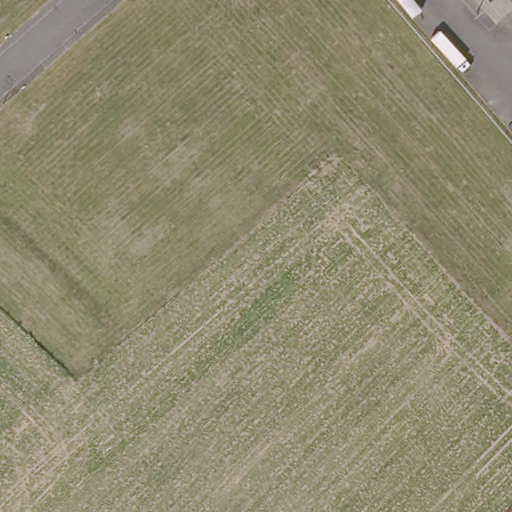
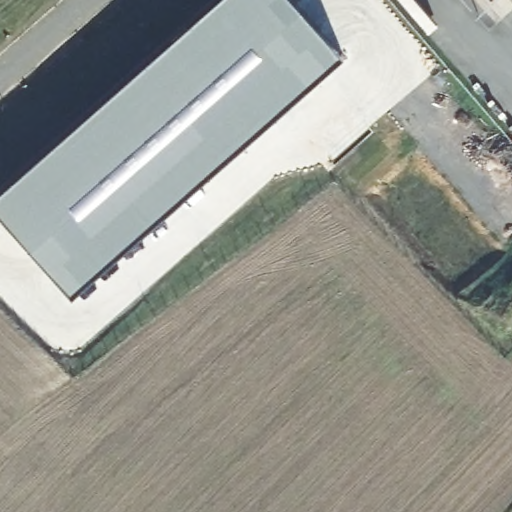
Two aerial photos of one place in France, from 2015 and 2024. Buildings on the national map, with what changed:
new [(73,292),(0,211),(0,187),(214,0),(298,0),(344,51),(73,292)]

